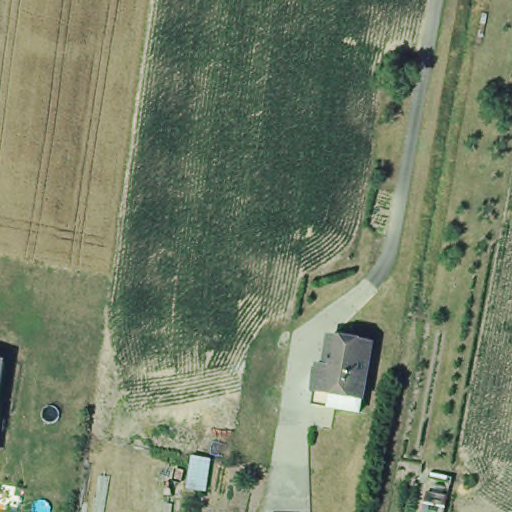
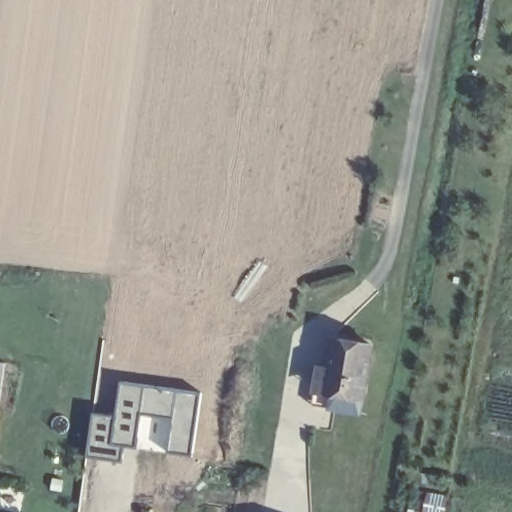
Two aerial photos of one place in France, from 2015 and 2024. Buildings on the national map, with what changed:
unchanged [(316,386),(320,365),(317,362),(322,335),(364,344),(354,394),(316,386)]
unchanged [(7,360),(0,402),(0,359),(7,360)]
unchanged [(352,410),(303,400),(310,361),(317,362),(320,365),(316,386),(354,394),(352,410)]
new [(145,386),(177,390),(201,395),(193,457),(169,455),(173,418),(143,415),(141,436),(126,434),(123,462),(87,458),(93,413),(117,417),(121,383),(145,386)]

